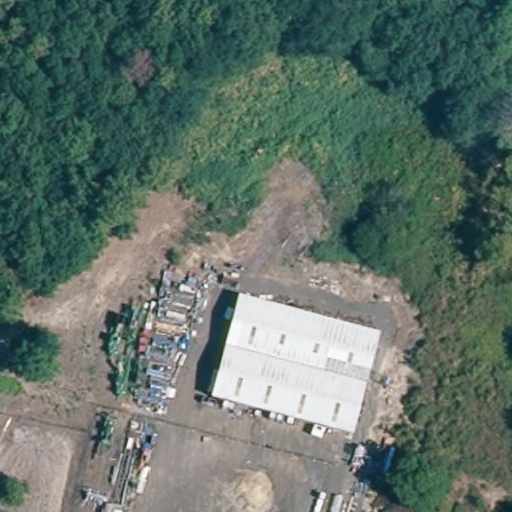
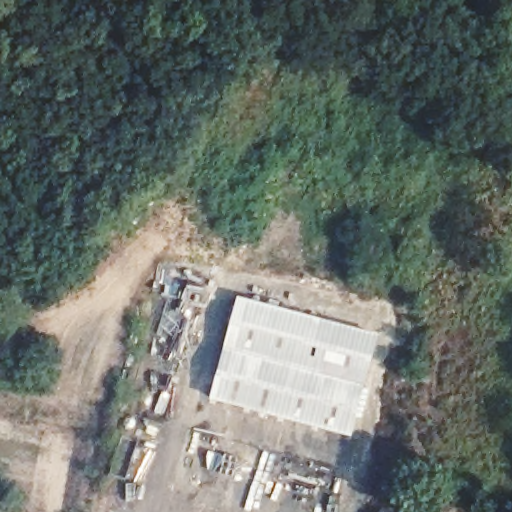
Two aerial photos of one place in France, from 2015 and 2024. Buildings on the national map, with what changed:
unchanged [(303,318),(356,331),(377,337),(361,397),(352,434),(215,398),(239,308),(240,301),(303,318)]

